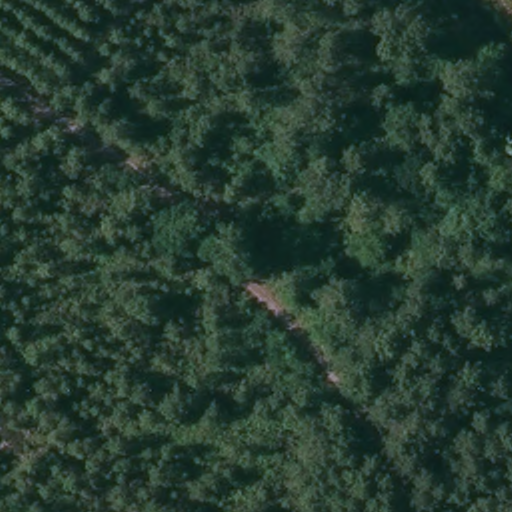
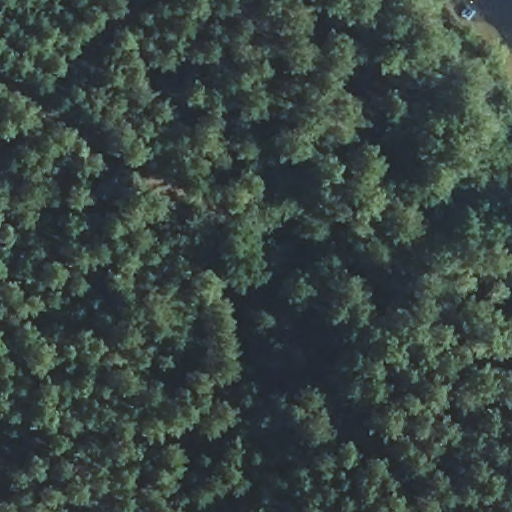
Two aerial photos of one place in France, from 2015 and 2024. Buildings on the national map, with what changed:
[]

